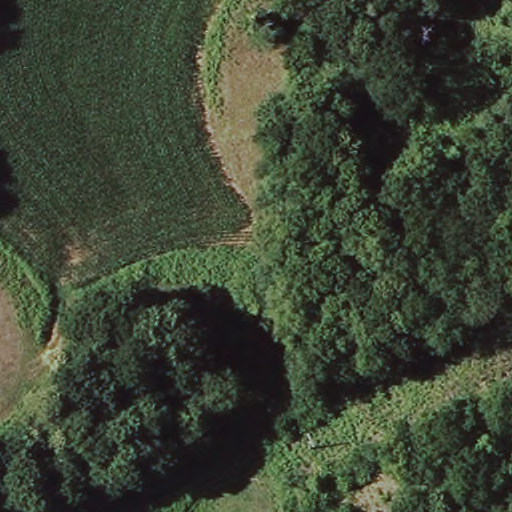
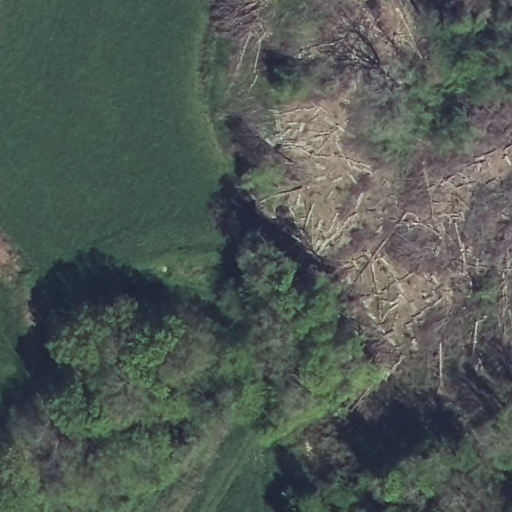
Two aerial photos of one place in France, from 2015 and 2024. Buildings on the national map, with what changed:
unchanged [(172,297),(188,301),(186,317),(170,313),(172,297)]

